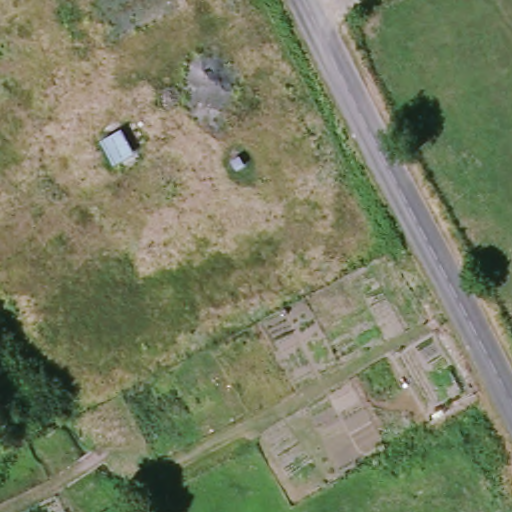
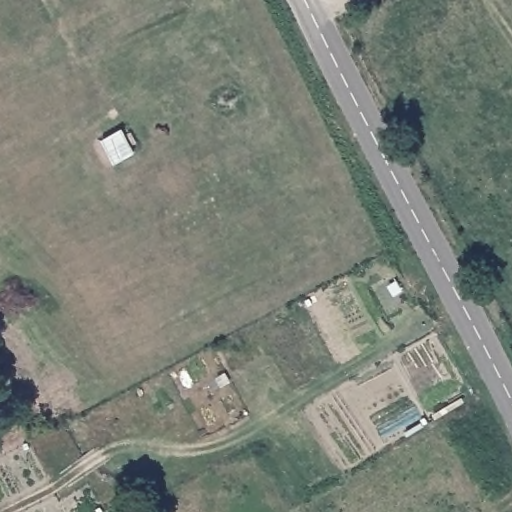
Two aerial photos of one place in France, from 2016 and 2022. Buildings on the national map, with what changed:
unchanged [(135,153),(114,164),(100,140),(120,128),(135,153)]

